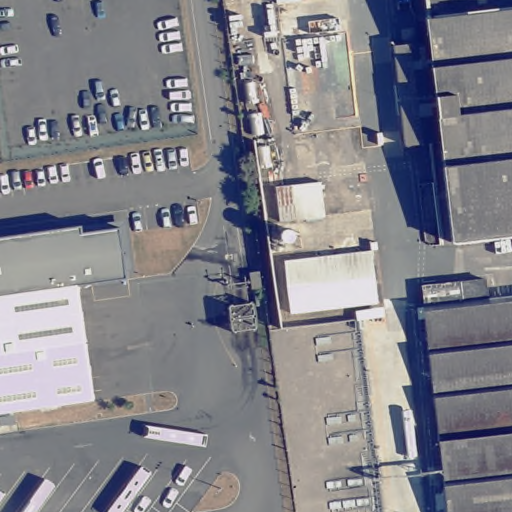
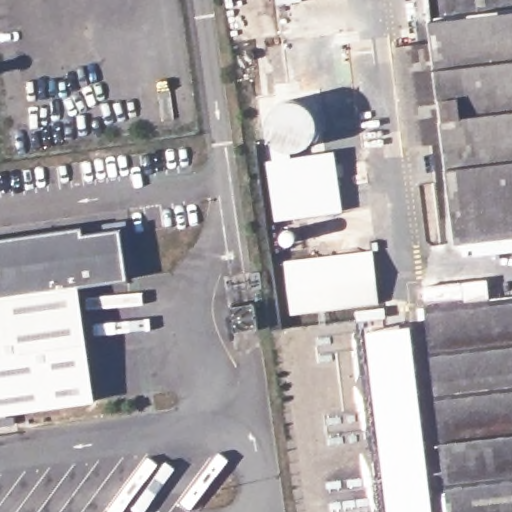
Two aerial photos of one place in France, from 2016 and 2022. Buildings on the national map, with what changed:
unchanged [(278,6),(277,0),(314,0),(278,6)]
unchanged [(427,0),(512,0),(512,236),(455,243),(444,147),(431,42),(427,0)]
unchanged [(444,147),(405,152),(391,48),(431,42),(444,147)]
new [(265,160),(272,159),(269,144),(275,147),(282,150),(289,151),(290,157),(333,151),(341,214),(273,221),(265,160)]
demolished [(324,185),(326,220),(282,225),(280,189),(324,185)]
unchanged [(129,278),(79,286),(94,399),(0,414),(0,237),(82,226),(83,234),(122,229),(129,278)]
unchanged [(284,262),(370,249),(377,302),(291,314),(284,262)]
unchanged [(485,275),(487,295),(512,292),(512,512),(450,512),(423,283),(485,275)]
new [(432,512),(385,512),(364,332),(410,325),(432,512)]

